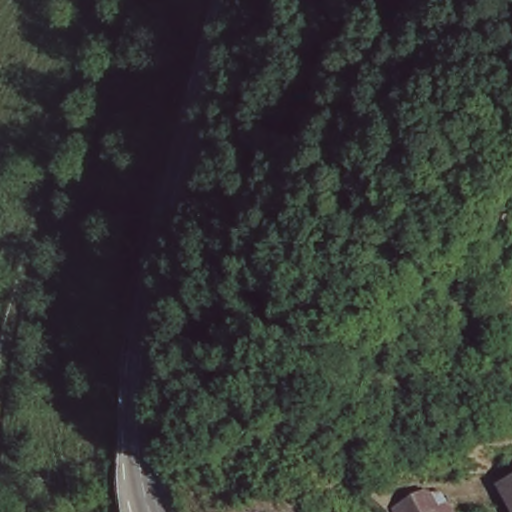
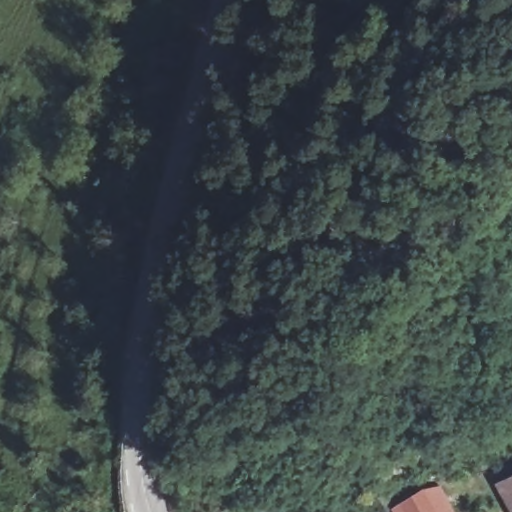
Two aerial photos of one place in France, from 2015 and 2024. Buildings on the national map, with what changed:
unchanged [(512,509),(500,485),(512,479),(512,509)]
unchanged [(427,512),(430,510),(430,512),(427,512)]

